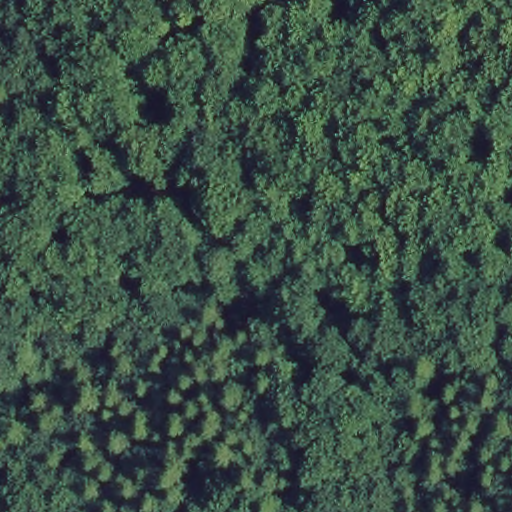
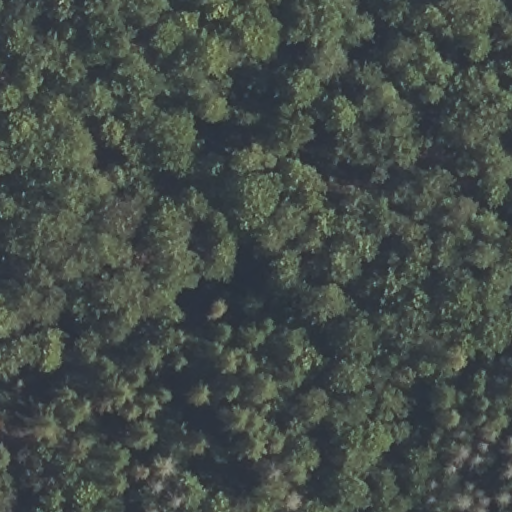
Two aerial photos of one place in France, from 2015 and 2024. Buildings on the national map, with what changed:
[]

